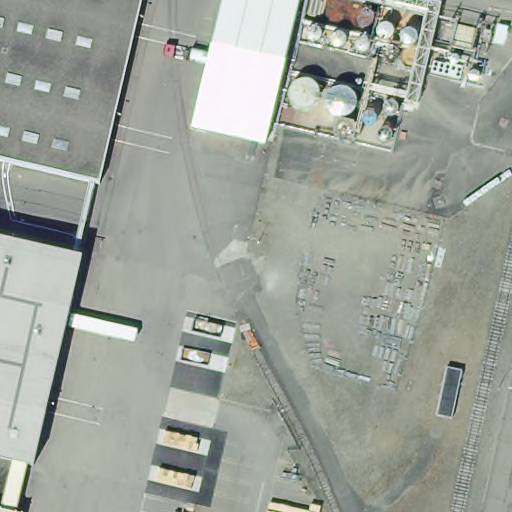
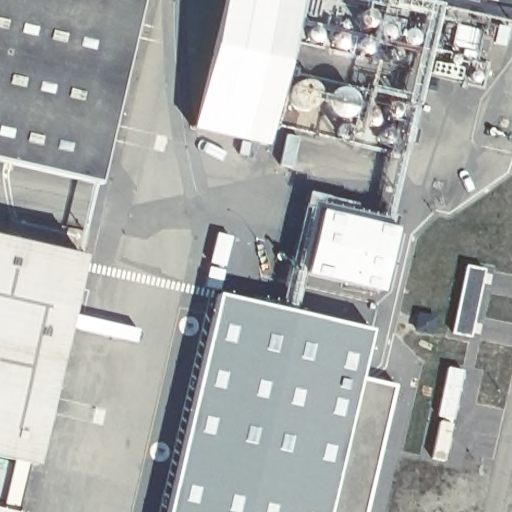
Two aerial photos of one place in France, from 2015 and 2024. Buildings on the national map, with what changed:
unchanged [(0,0),(146,0),(105,188),(0,164),(0,0)]
unchanged [(289,72),(276,127),(270,148),(194,130),(227,0),(305,0),(295,43),(289,72)]
unchanged [(489,24),(484,46),(437,35),(442,15),(489,24)]
unchanged [(512,22),(512,42),(505,40),(509,22),(512,22)]
demolished [(475,99),(470,121),(445,115),(451,93),(475,99)]
new [(396,227),(385,293),(305,276),(322,210),(396,227)]
unchanged [(0,453),(0,233),(72,250),(79,251),(45,401),(32,461),(27,460),(16,508),(22,509),(21,512),(0,512),(0,497),(10,456),(0,453)]
new [(471,337),(451,332),(467,266),(485,270),(484,274),(491,275),(489,286),(482,285),(471,337)]
new [(388,330),(350,512),(187,512),(232,300),(388,330)]
demolished [(233,340),(200,500),(149,490),(185,330),(233,340)]
unchanged [(452,416),(438,412),(447,365),(461,368),(452,416)]

